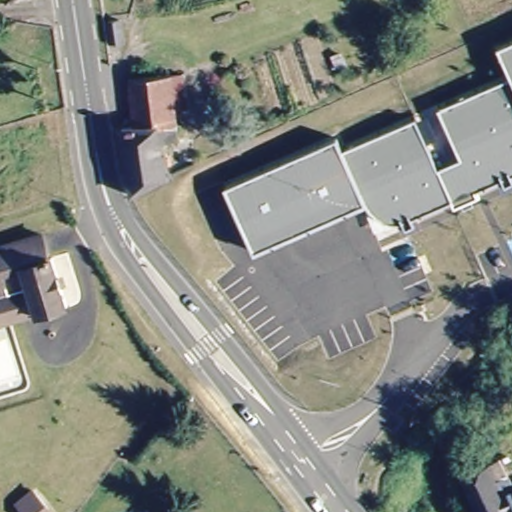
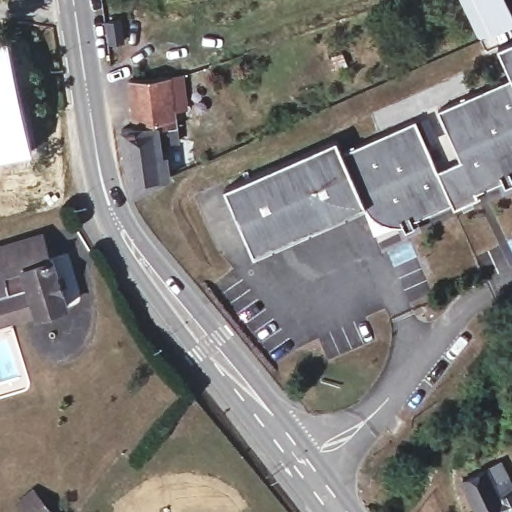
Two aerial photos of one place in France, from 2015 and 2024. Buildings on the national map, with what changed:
unchanged [(147,0),(153,0),(152,2),(147,0)]
new [(497,29),(502,40),(487,48),(482,36),(478,38),(460,0),(507,0),(512,11),(512,23),(497,29)]
new [(34,150),(0,158),(0,38),(9,36),(34,150)]
unchanged [(222,189),(227,188),(335,139),(341,153),(413,119),(437,169),(458,159),(436,109),(502,80),(509,76),(496,47),(512,40),(512,175),(511,176),(512,179),(512,181),(505,185),(502,180),(475,193),(477,198),(453,209),(451,204),(412,223),(413,228),(405,232),(402,227),(398,227),(392,226),(388,225),(385,224),(380,223),(376,220),(372,217),(368,214),(365,209),(363,205),(277,244),(252,255),(222,189)]
unchanged [(134,129),(127,84),(167,75),(180,72),(186,104),(172,106),(177,143),(159,149),(165,185),(130,202),(121,131),(134,129)]
unchanged [(0,247),(40,234),(47,259),(52,258),(66,305),(37,314),(36,313),(17,318),(0,323),(0,247)]
unchanged [(496,464),(510,495),(512,494),(512,512),(487,512),(470,477),(496,464)]
unchanged [(53,508),(49,512),(27,512),(26,511),(40,496),(53,508)]

